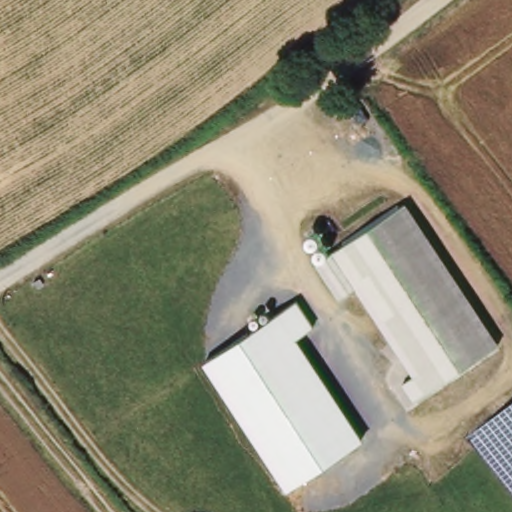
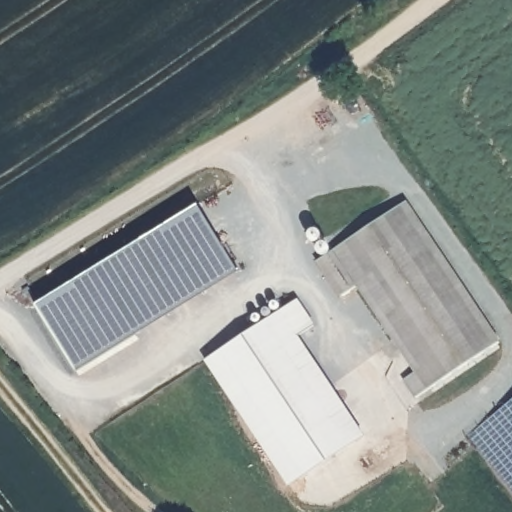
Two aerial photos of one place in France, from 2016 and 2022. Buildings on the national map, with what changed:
unchanged [(502,341),(418,401),(405,382),(414,376),(356,287),(340,297),(317,262),(407,202),(502,341)]
new [(36,306),(199,206),(238,272),(77,372),(36,306)]
unchanged [(317,325),(298,337),(365,437),(287,490),(205,362),(298,298),(317,325)]
unchanged [(467,438),(512,403),(512,493),(467,438)]

